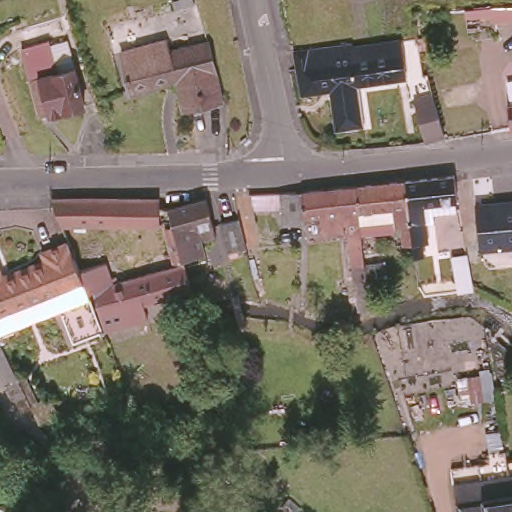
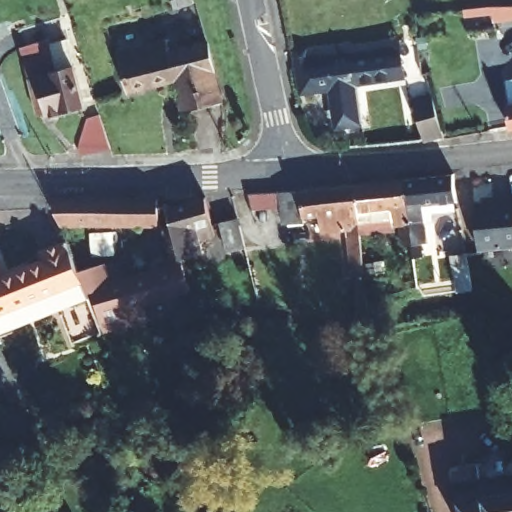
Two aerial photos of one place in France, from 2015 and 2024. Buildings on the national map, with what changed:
unchanged [(498,24),(448,30),(447,16),(496,10),(498,24)]
unchanged [(46,101),(35,66),(26,69),(23,59),(30,58),(33,39),(41,31),(46,29),(64,25),(68,37),(83,92),(46,101)]
unchanged [(182,107),(174,80),(128,90),(117,49),(164,36),(168,49),(205,40),(223,98),(182,107)]
unchanged [(333,128),(326,91),(301,94),(290,55),(346,49),(346,55),(373,51),(384,50),(389,85),(376,87),(352,89),(358,125),(333,128)]
unchanged [(512,134),(508,99),(512,99),(512,133),(512,134)]
unchanged [(421,142),(415,103),(435,100),(442,141),(421,142)]
unchanged [(88,150),(84,134),(100,130),(108,159),(83,165),(80,152),(88,150)]
unchanged [(412,244),(403,245),(401,224),(394,225),(392,209),(358,212),(356,186),(404,181),(454,175),(459,210),(432,214),(432,220),(425,220),(428,242),(421,242),(421,244),(423,257),(414,258),(412,244)]
unchanged [(354,279),(353,279),(348,230),(322,234),(321,222),(308,222),(308,218),(304,218),(305,223),(286,225),(284,208),(249,209),(248,194),(283,193),(301,192),(356,186),(358,212),(359,224),(365,278),(369,313),(359,314),(354,279)]
unchanged [(91,258),(96,272),(89,274),(81,277),(79,277),(68,248),(51,207),(53,204),(136,204),(159,204),(158,212),(168,214),(206,203),(211,230),(213,238),(199,242),(207,268),(196,270),(184,273),(183,270),(178,272),(174,269),(165,234),(159,229),(158,229),(138,230),(84,230),(94,257),(91,258)]
unchanged [(481,252),(477,210),(512,206),(512,249),(481,252)]
unchanged [(48,270),(43,258),(68,248),(79,277),(82,283),(0,318),(0,279),(4,289),(48,270)]
unchanged [(471,283),(456,284),(451,257),(466,254),(471,283)]
unchanged [(105,269),(110,284),(114,283),(116,288),(178,272),(183,270),(184,273),(188,290),(193,304),(194,313),(189,314),(187,309),(146,321),(147,324),(125,329),(121,315),(99,321),(93,297),(89,298),(81,277),(89,274),(96,272),(105,269)]
unchanged [(97,322),(103,337),(75,348),(61,316),(0,341),(0,318),(82,283),(97,322)]
unchanged [(15,404),(12,406),(3,389),(0,384),(0,350),(0,352),(17,383),(25,401),(30,413),(21,417),(15,404)]
unchanged [(506,461),(512,460),(512,510),(506,461)]
unchanged [(506,461),(512,510),(512,512),(485,512),(479,465),(506,461)]
unchanged [(452,469),(479,465),(485,512),(458,512),(452,469)]

